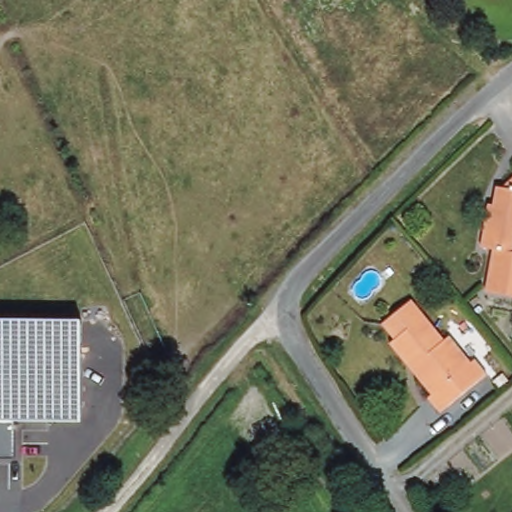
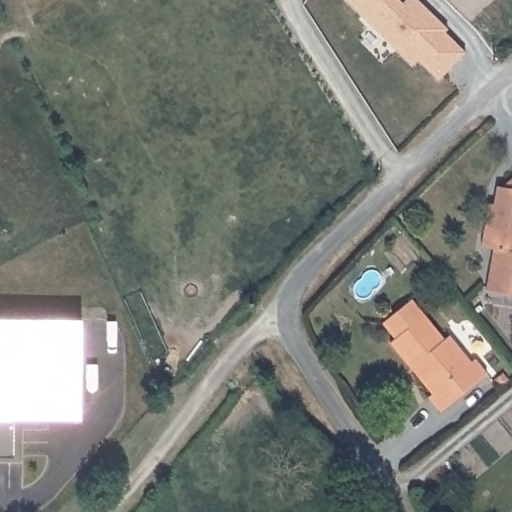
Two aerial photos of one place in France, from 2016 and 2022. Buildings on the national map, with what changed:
new [(403,0),(420,0),(434,15),(446,29),(443,31),(463,53),(434,79),(415,57),(409,63),(351,0),(402,0),(403,0)]
unchanged [(502,245),(490,244),(494,224),(496,214),(498,201),(503,202),(506,182),(511,184),(512,182),(512,291),(495,287),(502,245)]
unchanged [(395,338),(400,334),(389,321),(387,319),(414,295),(416,295),(429,310),(449,335),(454,330),(476,357),(480,353),(492,367),(486,373),(446,407),(433,392),(437,389),(417,364),(395,338)]
unchanged [(80,421),(15,420),(15,460),(0,459),(0,317),(81,318),(80,421)]

